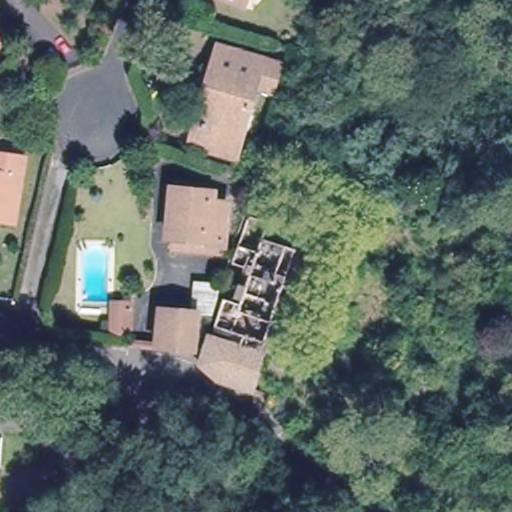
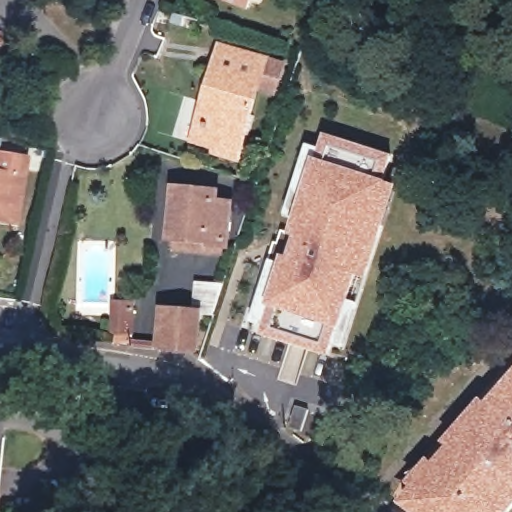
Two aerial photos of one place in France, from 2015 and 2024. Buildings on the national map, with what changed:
unchanged [(254,4),(244,0),(255,0),(254,4)]
unchanged [(11,56),(0,57),(0,31),(10,31),(11,56)]
unchanged [(191,133),(196,119),(219,44),(263,58),(242,134),(237,147),(191,133)]
new [(268,260),(275,242),(278,243),(282,230),(288,232),(292,220),(283,214),(306,144),(318,148),(323,133),(392,155),(385,181),(396,185),(367,277),(357,274),(347,302),(357,304),(343,347),(332,343),(327,357),(261,335),(263,325),(249,321),(268,260)]
unchanged [(0,218),(0,153),(25,159),(14,220),(0,218)]
unchanged [(213,209),(228,212),(225,254),(204,251),(204,245),(173,242),(177,196),(214,199),(213,209)]
demolished [(224,383),(207,369),(216,342),(230,347),(234,337),(219,331),(228,306),(242,310),(254,274),(238,268),(253,223),(274,231),(268,246),(288,254),(282,274),(292,278),(252,393),(224,383)]
unchanged [(196,310),(197,289),(222,289),(221,304),(218,312),(196,310)]
unchanged [(106,303),(132,303),(133,338),(106,338),(106,303)]
unchanged [(161,353),(162,335),(169,335),(169,317),(200,319),(197,356),(191,356),(161,353)]
new [(405,481),(422,461),(430,468),(447,447),(441,441),(476,402),(483,408),(512,376),(512,505),(505,512),(412,512),(398,502),(412,487),(405,481)]
new [(292,406),(306,410),(298,432),(285,428),(292,406)]

